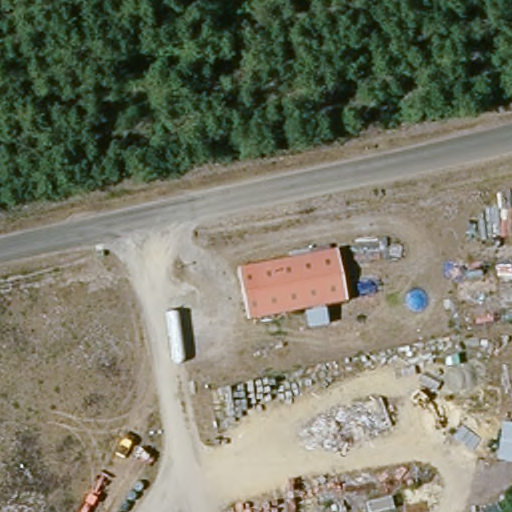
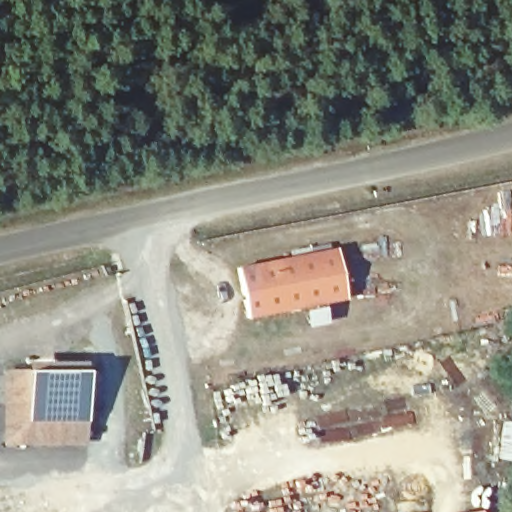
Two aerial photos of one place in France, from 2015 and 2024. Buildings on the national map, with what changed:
unchanged [(349,294),(253,316),(242,265),(339,245),(349,294)]
new [(8,444),(6,377),(87,372),(86,443),(8,444)]

